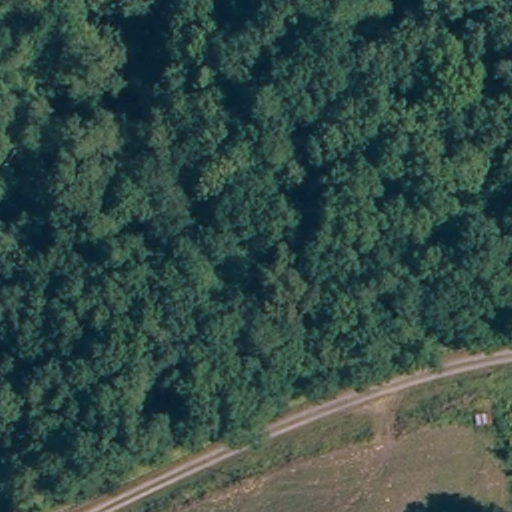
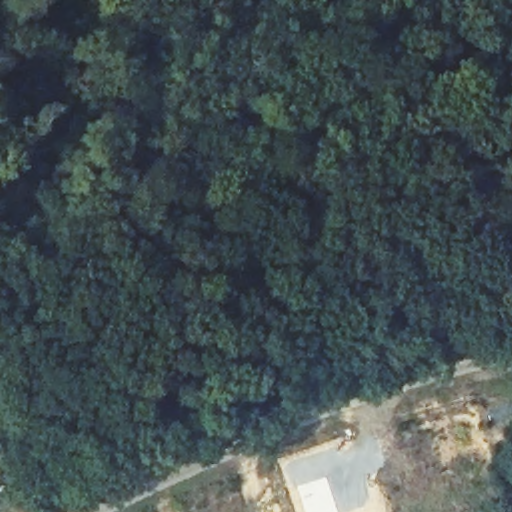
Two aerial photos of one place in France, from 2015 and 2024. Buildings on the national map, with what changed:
unchanged [(13,427),(20,454),(0,458),(0,430),(13,427)]
unchanged [(29,490),(35,512),(23,512),(17,493),(29,490)]

